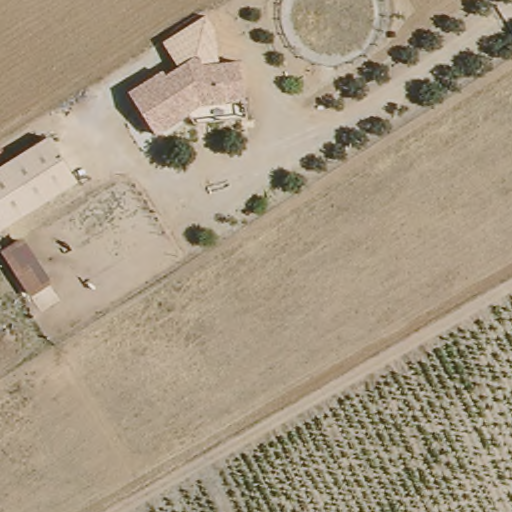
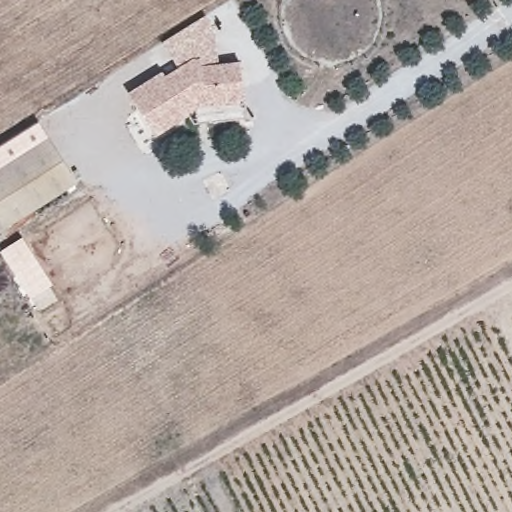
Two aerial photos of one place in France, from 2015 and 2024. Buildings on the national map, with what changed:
unchanged [(163,40),(205,15),(217,36),(220,65),(208,66),(208,59),(193,60),(178,69),(163,40)]
unchanged [(168,142),(161,131),(135,90),(169,69),(171,74),(193,60),(208,59),(208,66),(243,64),(245,96),(246,101),(247,118),(222,120),(221,111),(221,104),(204,105),(197,94),(188,100),(195,110),(202,121),(168,142)]
unchanged [(43,140),(74,186),(0,233),(0,168),(43,140)]
unchanged [(19,239),(47,282),(26,296),(0,259),(0,254),(19,239)]

